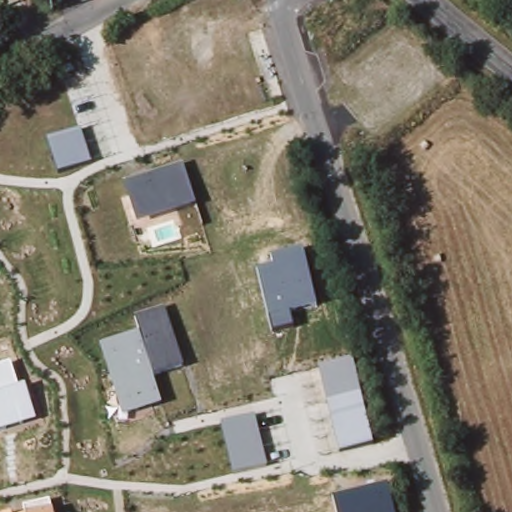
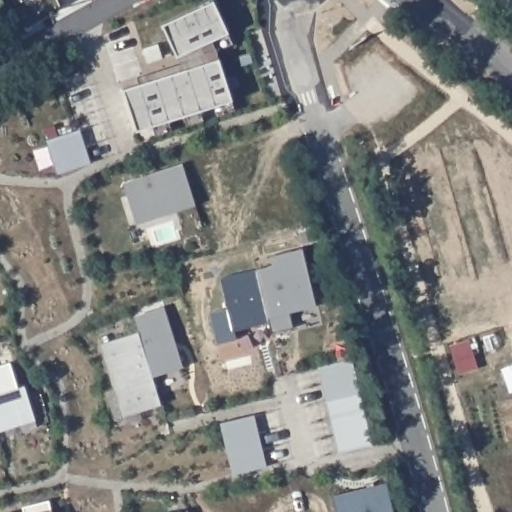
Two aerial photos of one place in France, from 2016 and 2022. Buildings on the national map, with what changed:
new [(153,125),(136,130),(123,89),(140,83),(137,77),(181,63),(205,51),(202,45),(177,56),(162,24),(211,0),(214,0),(230,31),(229,32),(234,42),(217,50),(220,58),(234,99),(233,100),(236,110),(220,115),(216,105),(201,110),(205,120),(188,125),(185,115),(169,120),(172,130),(156,135),(153,125)]
unchanged [(59,175),(46,140),(80,130),(91,164),(59,175)]
unchanged [(136,226),(124,186),(182,166),(195,206),(136,226)]
unchanged [(290,313),(292,329),(273,335),(258,271),(274,266),(271,257),(303,249),(316,309),(290,313)]
unchanged [(124,417),(101,346),(140,333),(135,318),(163,309),(184,369),(153,378),(161,405),(124,417)]
unchanged [(340,455),(318,369),(352,360),(373,445),(340,455)]
unchanged [(0,366),(10,363),(19,387),(25,385),(36,421),(0,432),(0,366)]
unchanged [(233,476),(220,424),(256,415),(268,468),(233,476)]
unchanged [(332,498),(388,485),(394,512),(336,512),(332,498)]
unchanged [(22,508),(48,501),(51,511),(51,512),(24,512),(22,508)]
new [(189,509),(189,512),(178,512),(182,511),(189,509)]

